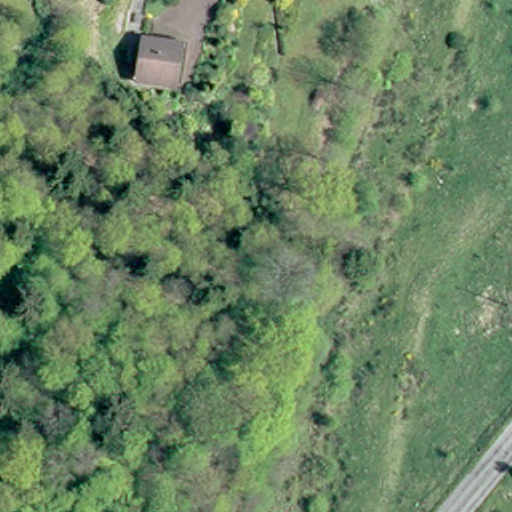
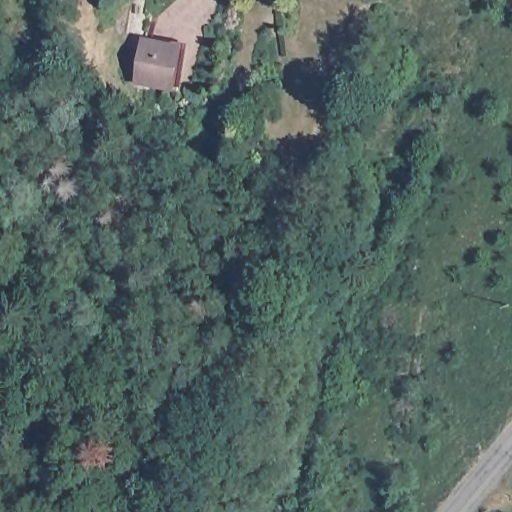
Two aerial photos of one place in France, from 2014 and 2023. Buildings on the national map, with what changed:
unchanged [(177,81),(140,77),(144,38),(182,42),(177,81)]

